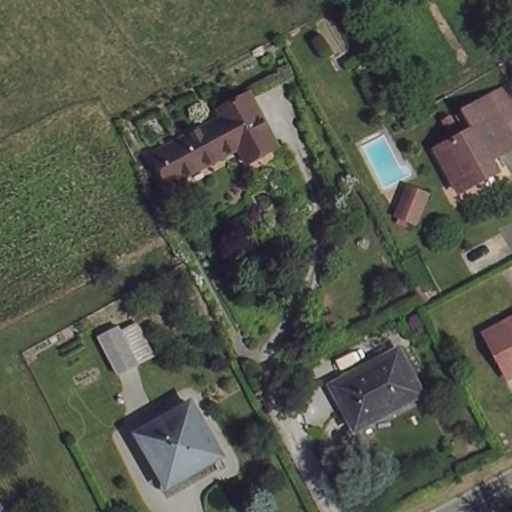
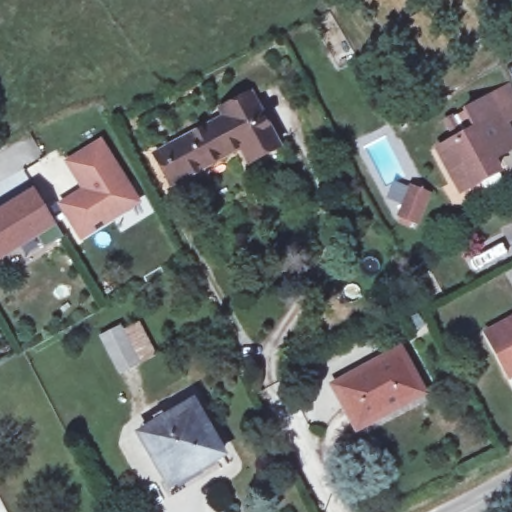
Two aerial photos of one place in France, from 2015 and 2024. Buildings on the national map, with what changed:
unchanged [(153,159),(160,155),(222,122),(218,115),(247,99),(234,76),(270,57),(283,82),(247,101),(274,150),(245,165),(237,150),(175,183),(168,187),(153,159)]
unchanged [(440,165),(470,148),(460,130),(466,127),(466,126),(510,101),(512,104),(512,132),(506,136),(512,148),(512,163),(494,173),(500,185),(490,191),(463,206),(461,202),(440,165)]
new [(85,192),(68,164),(100,144),(135,202),(81,237),(62,206),(85,192)]
unchanged [(428,194),(417,222),(399,215),(410,187),(428,194)]
new [(36,191),(63,236),(44,247),(37,234),(0,256),(0,213),(36,191)]
unchanged [(488,328),(512,315),(512,371),(511,372),(488,328)]
unchanged [(102,335),(122,325),(124,331),(141,323),(157,356),(140,364),(121,373),(102,335)]
unchanged [(334,388),(351,380),(352,383),(380,368),(378,365),(401,353),(423,397),(357,432),(334,388)]
unchanged [(194,466),(162,485),(135,438),(188,407),(218,458),(197,471),(194,466)]

